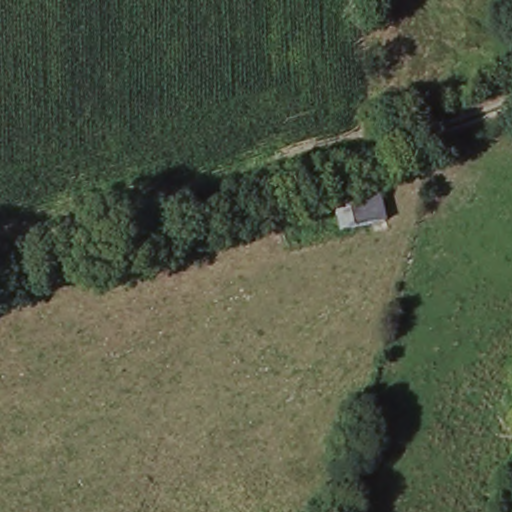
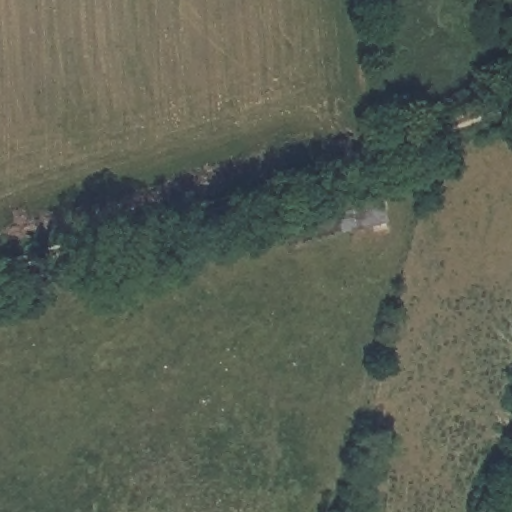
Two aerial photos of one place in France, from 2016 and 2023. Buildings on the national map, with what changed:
unchanged [(381,203),(385,228),(340,238),(336,214),(381,203)]

